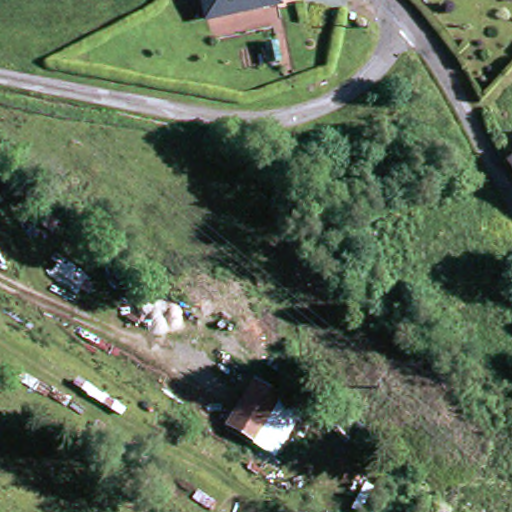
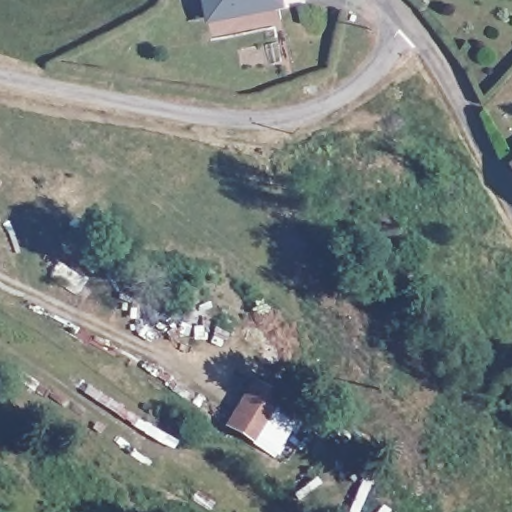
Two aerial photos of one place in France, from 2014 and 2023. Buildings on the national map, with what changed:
unchanged [(206,22),(200,0),(271,0),(274,8),(206,22)]
unchanged [(305,2),(274,8),(271,0),(304,0),(305,2)]
unchanged [(509,158),(512,156),(512,163),(509,158)]
unchanged [(301,407),(274,454),(227,426),(252,381),(301,407)]

